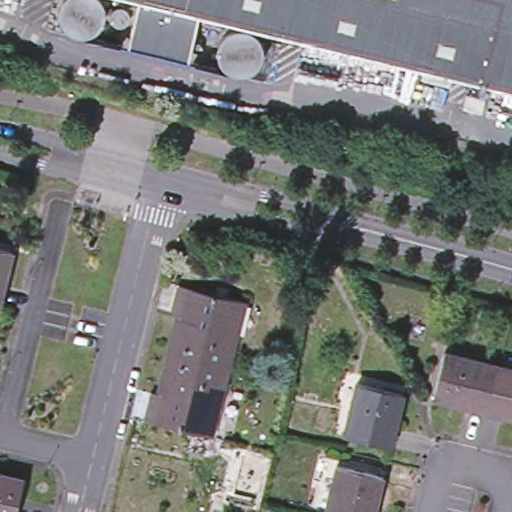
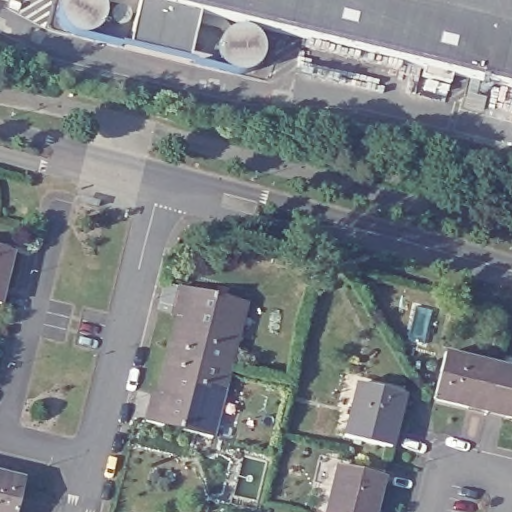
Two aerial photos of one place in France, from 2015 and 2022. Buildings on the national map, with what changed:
unchanged [(102,2),(104,5),(105,8),(105,11),(105,15),(105,18),(103,22),(101,25),(99,27),(96,30),(93,32),(90,33),(87,34),(83,34),(80,34),(76,33),(73,31),(70,30),(67,27),(65,24),(63,21),(62,18),(61,14),(61,11),(62,8),(63,4),(65,2),(66,0),(101,0),(102,2)]
unchanged [(189,49),(131,35),(140,0),(146,0),(198,13),(189,49)]
unchanged [(512,88),(198,13),(146,0),(512,0),(512,88)]
unchanged [(130,22),(128,23),(127,24),(126,25),(125,26),(123,26),(121,26),(120,26),(118,26),(116,25),(115,24),(114,23),(113,22),(112,20),(111,19),(111,17),(111,16),(112,14),(112,13),(113,12),(114,11),(115,10),(116,9),(117,8),(118,8),(120,7),(121,7),(122,8),(124,8),(125,8),(126,9),(127,10),(128,11),(130,12),(130,13),(130,14),(131,16),(131,17),(130,19),(130,20),(130,22)]
unchanged [(248,31),(251,32),(253,33),(256,36),(258,38),(260,41),(261,44),(262,47),(263,50),(263,53),(262,57),(261,61),(259,64),(257,67),(254,69),(251,71),(247,72),(244,73),(240,73),(237,73),(233,72),(230,71),(227,68),(225,66),(222,63),(220,60),(220,56),(219,53),(219,49),(220,46),(221,43),(222,40),(225,37),(226,35),(229,33),(232,31),(235,30),(238,30),(241,30),(245,30),(248,31)]
unchanged [(0,306),(0,248),(17,253),(8,288),(3,307),(0,306)]
unchanged [(183,309),(178,308),(183,288),(247,306),(228,380),(168,365),(183,309)]
unchanged [(486,415),(436,403),(447,356),(497,369),(486,415)]
unchanged [(228,380),(213,439),(147,422),(151,405),(157,407),(168,365),(228,380)]
unchanged [(512,373),(512,422),(486,415),(497,369),(512,373)]
unchanged [(406,398),(393,451),(345,438),(359,386),(406,398)]
unchanged [(386,481),(377,512),(327,512),(339,469),(386,481)]
unchanged [(25,483),(17,512),(0,512),(0,477),(25,483)]

